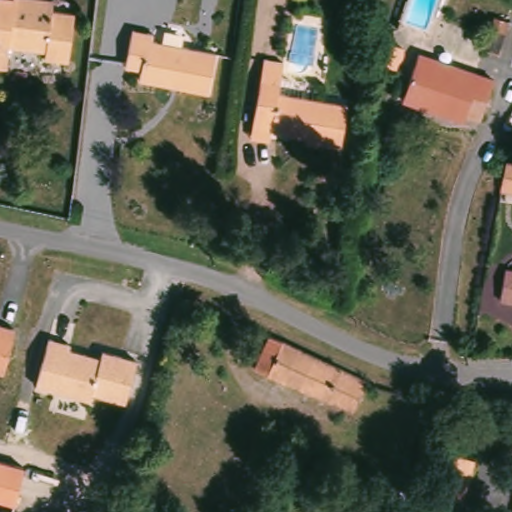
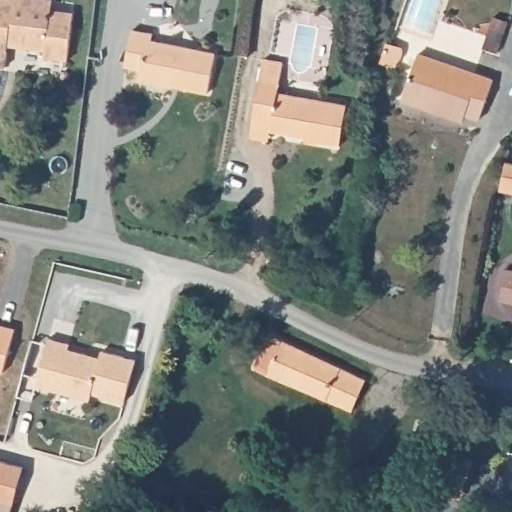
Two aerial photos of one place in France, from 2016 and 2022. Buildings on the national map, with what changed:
unchanged [(15,15),(53,18),(54,12),(76,13),(72,56),(50,54),(50,46),(10,43),(6,68),(0,67),(0,0),(17,0),(15,15)]
unchanged [(162,38),(161,45),(221,57),(212,97),(150,85),(151,73),(134,69),(141,33),(162,38)]
unchanged [(496,81),(485,118),(432,102),(429,110),(407,103),(420,57),(496,81)]
unchanged [(390,61),(388,72),(375,70),(377,59),(390,61)]
unchanged [(285,80),(283,93),(350,104),(343,146),(321,143),(322,138),(277,131),(277,127),(260,124),(268,78),(285,80)]
unchanged [(512,173),(512,186),(510,202),(488,198),(493,169),(512,173)]
unchanged [(512,273),(512,305),(501,303),(508,273),(512,273)]
unchanged [(11,342),(2,370),(0,369),(0,321),(16,326),(11,342)]
unchanged [(50,333),(71,340),(70,345),(86,350),(101,355),(104,347),(137,358),(132,375),(125,398),(92,388),(90,396),(36,380),(45,351),(50,333)]
unchanged [(273,345),(363,373),(353,406),(257,375),(266,343),(273,345)]
unchanged [(0,501),(0,460),(25,467),(14,505),(0,501)]
unchanged [(455,466),(445,505),(425,500),(436,461),(455,466)]

